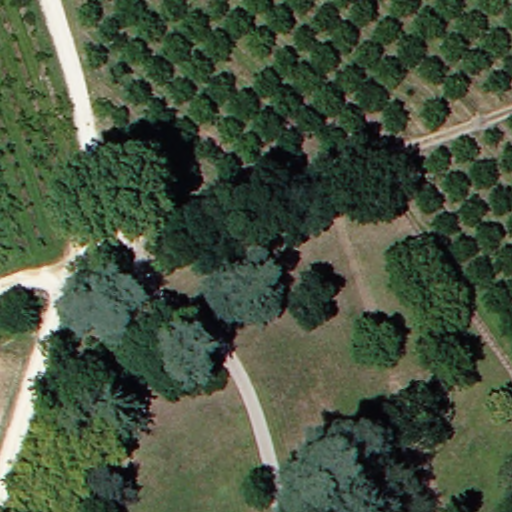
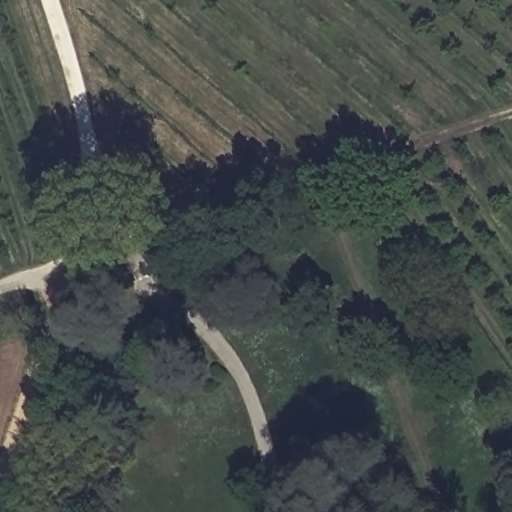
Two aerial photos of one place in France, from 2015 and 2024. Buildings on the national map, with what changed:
[]

